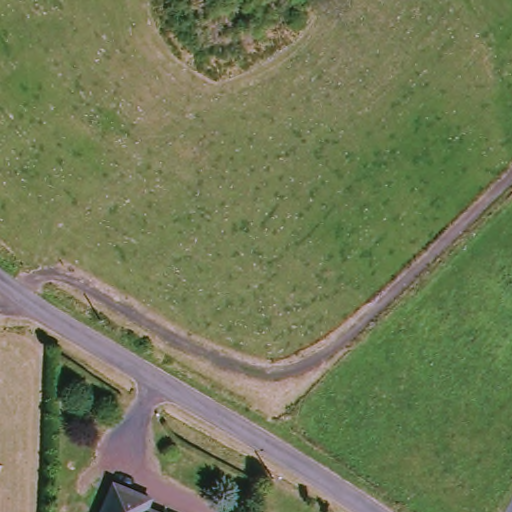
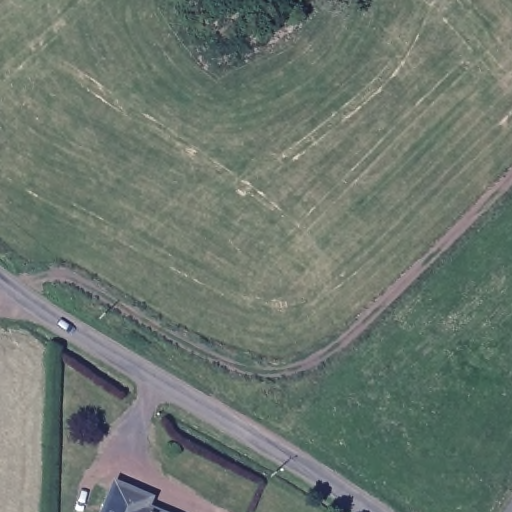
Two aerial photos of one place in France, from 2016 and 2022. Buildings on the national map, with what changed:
unchanged [(140,509),(146,512),(98,512),(111,483),(145,497),(140,509)]

